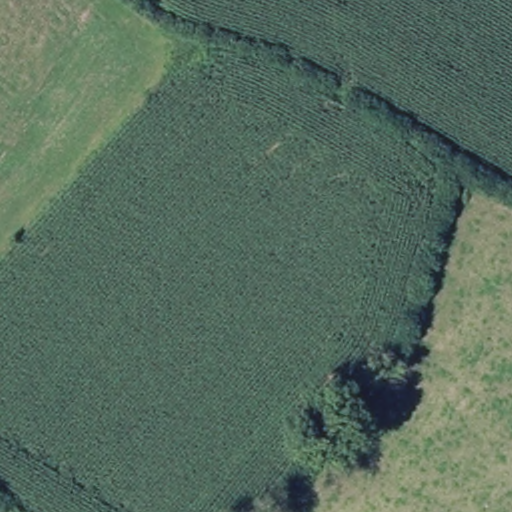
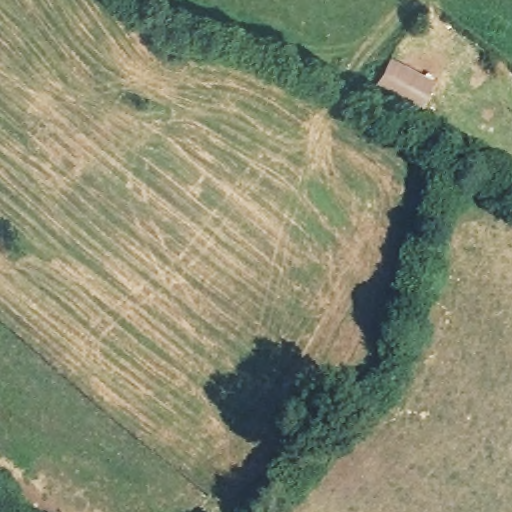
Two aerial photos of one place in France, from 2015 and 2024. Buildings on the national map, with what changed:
new [(376,84),(391,56),(434,79),(418,107),(376,84)]

